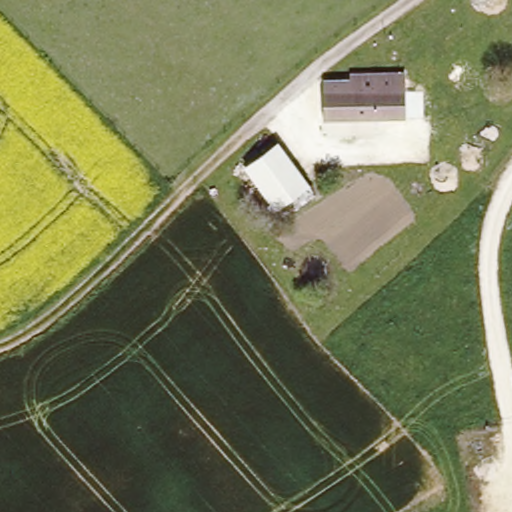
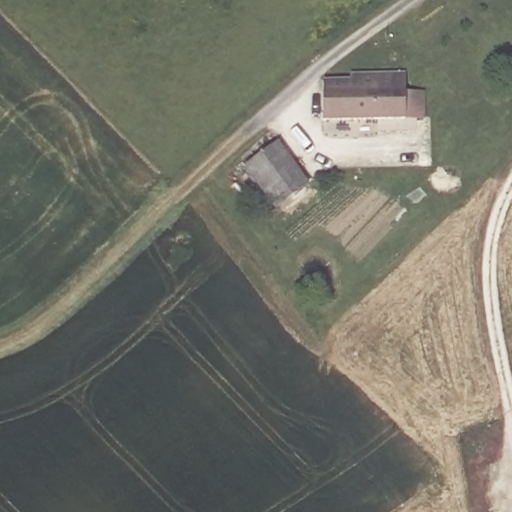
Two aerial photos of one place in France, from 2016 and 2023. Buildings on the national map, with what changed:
unchanged [(324,84),(399,80),(401,121),(324,122),(324,84)]
unchanged [(277,207),(247,163),(281,141),(312,180),(277,207)]

